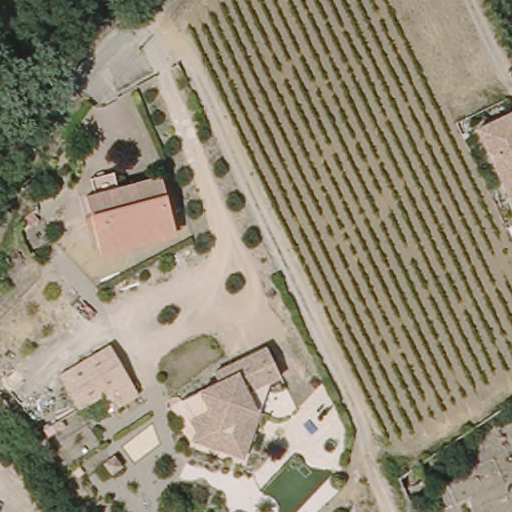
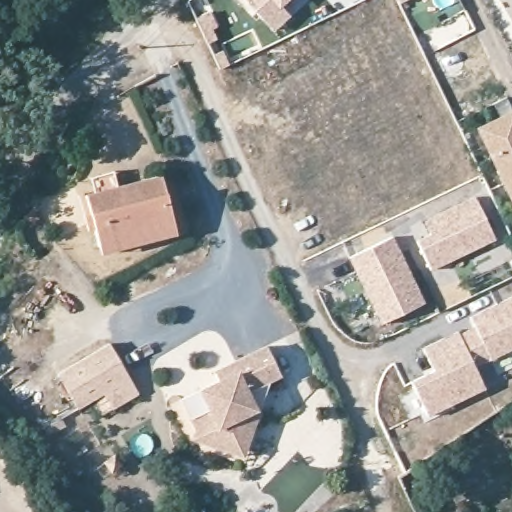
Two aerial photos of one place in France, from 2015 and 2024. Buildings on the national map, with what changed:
new [(262,20),(240,0),(280,0),(278,3),(288,13),(272,30),(262,20)]
new [(396,0),(407,0),(398,5),(396,0)]
unchanged [(479,126),(512,111),(512,201),(509,194),(479,126)]
unchanged [(100,250),(85,196),(92,194),(87,177),(109,171),(113,188),(160,174),(175,227),(100,250)]
new [(432,272),(418,242),(433,236),(426,223),(476,199),(496,241),(432,272)]
new [(382,327),(350,260),(393,239),(425,306),(382,327)]
new [(476,327),(472,318),(512,299),(512,349),(474,367),(458,334),(476,327)]
new [(458,334),(474,367),(484,390),(426,417),(409,386),(434,372),(423,350),(458,334)]
unchanged [(108,345),(137,397),(101,417),(92,405),(79,411),(60,374),(108,345)]
unchanged [(198,391),(217,382),(211,372),(264,347),(279,377),(268,383),(274,400),(255,411),(243,457),(195,442),(196,428),(192,423),(185,426),(176,402),(198,391)]

